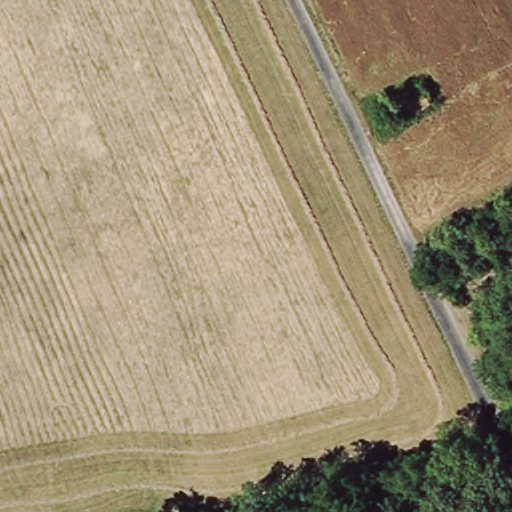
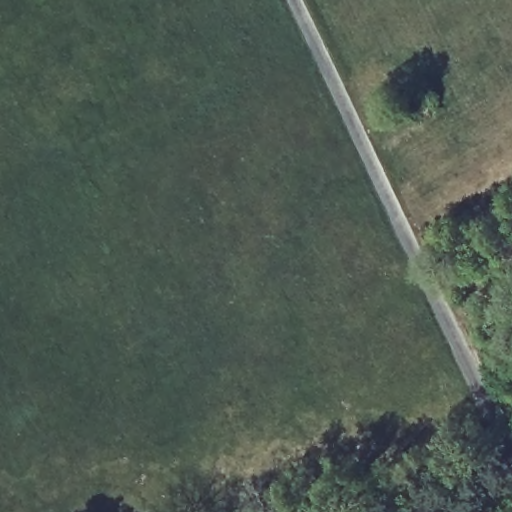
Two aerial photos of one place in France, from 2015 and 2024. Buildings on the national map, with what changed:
unchanged [(424,76),(403,89),(392,69),(415,59),(424,76)]

